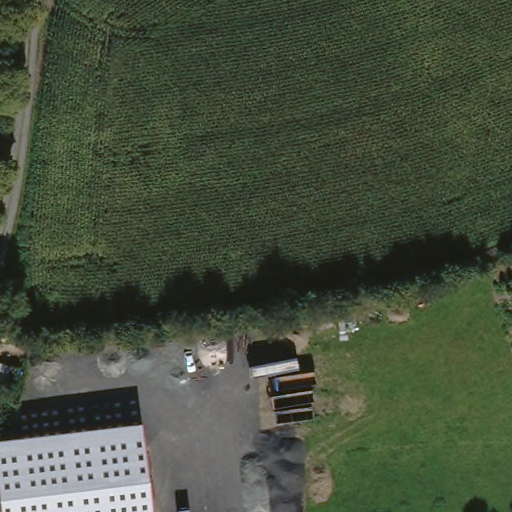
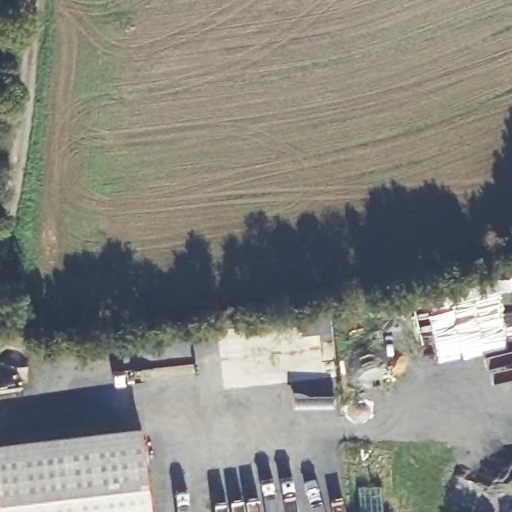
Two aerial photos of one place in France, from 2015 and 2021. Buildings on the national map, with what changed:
unchanged [(1,512),(0,504),(0,441),(141,423),(152,512),(1,512)]

